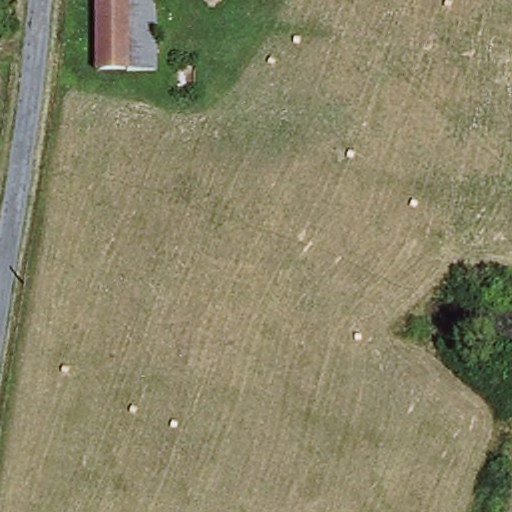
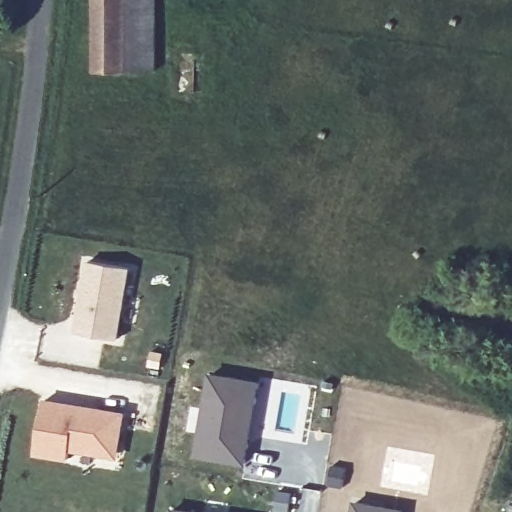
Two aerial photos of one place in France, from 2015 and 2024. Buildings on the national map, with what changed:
unchanged [(97,66),(97,0),(154,0),(154,67),(97,66)]
new [(88,261),(128,268),(116,339),(75,333),(88,261)]
new [(207,372),(262,380),(245,467),(193,457),(207,372)]
new [(43,398),(122,411),(118,442),(96,451),(68,446),(67,456),(34,451),(43,398)]
new [(405,508),(404,512),(351,512),(353,500),(405,508)]
new [(194,512),(173,512),(173,508),(194,512)]

